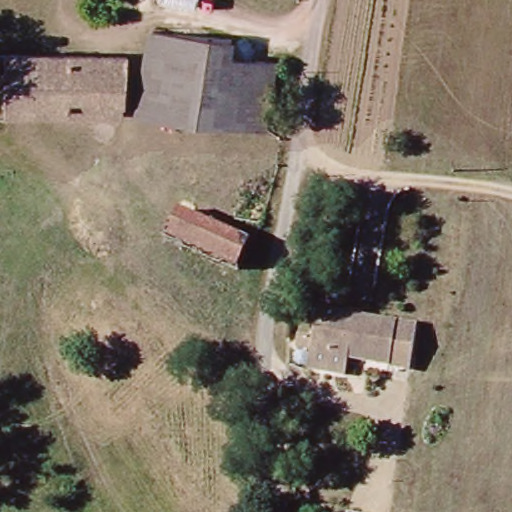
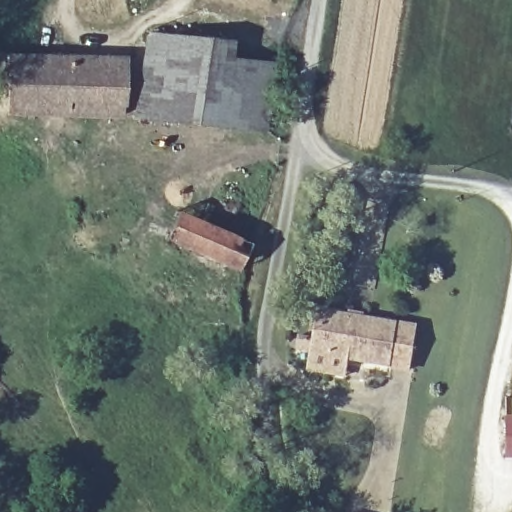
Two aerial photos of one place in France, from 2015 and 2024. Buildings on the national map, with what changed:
unchanged [(225,63),(269,71),(259,135),(134,114),(146,29),(227,44),(225,63)]
unchanged [(10,85),(0,85),(0,56),(125,59),(123,114),(9,109),(10,85)]
unchanged [(244,243),(234,266),(167,237),(176,214),(244,243)]
unchanged [(417,330),(410,371),(315,355),(322,314),(417,330)]
new [(512,460),(506,460),(504,420),(512,420),(512,460)]

